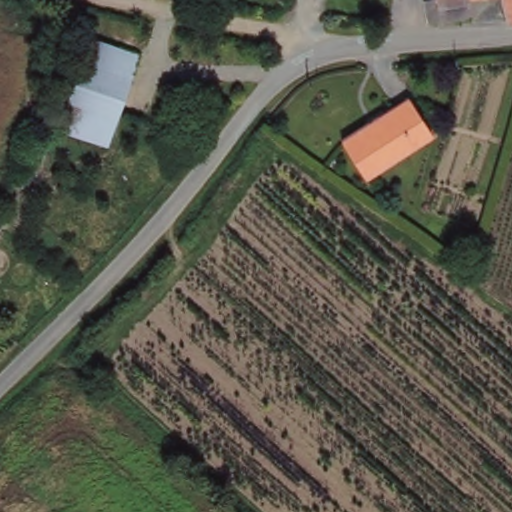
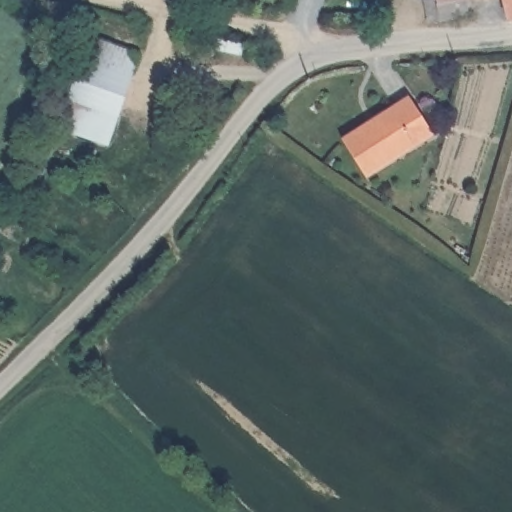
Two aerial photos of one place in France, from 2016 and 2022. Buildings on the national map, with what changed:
unchanged [(475,22),(429,30),(424,8),(436,5),(436,0),(484,0),(472,3),(475,22)]
unchanged [(502,26),(500,9),(498,0),(512,0),(512,24),(502,26)]
unchanged [(139,65),(127,88),(80,65),(91,41),(139,65)]
unchanged [(127,88),(99,147),(50,126),(80,65),(127,88)]
unchanged [(425,139),(360,179),(337,140),(402,100),(425,139)]

